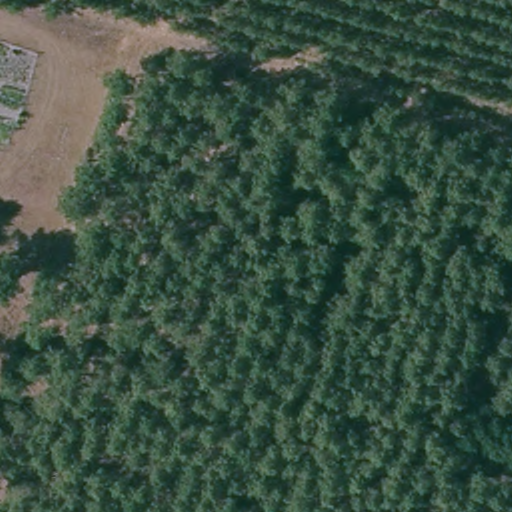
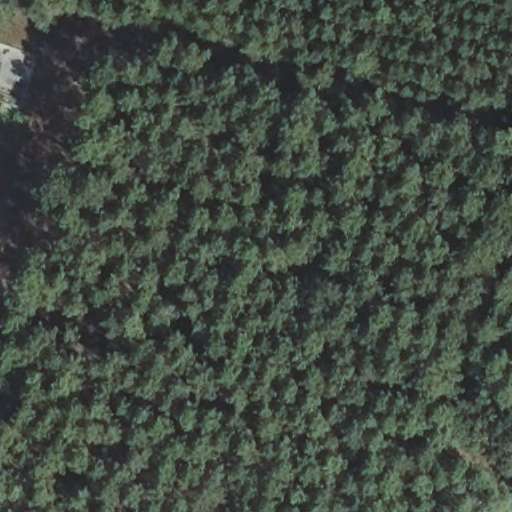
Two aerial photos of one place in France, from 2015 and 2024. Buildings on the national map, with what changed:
[]

